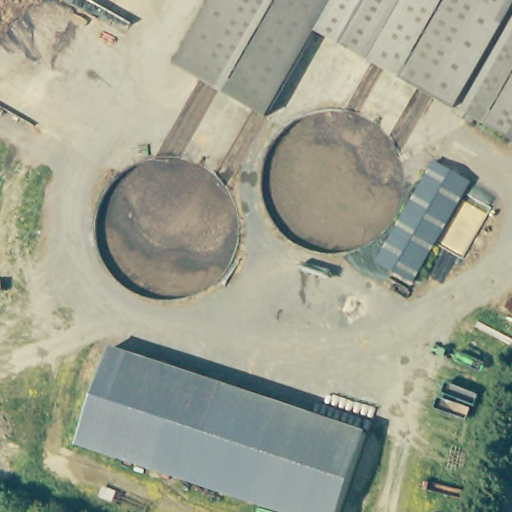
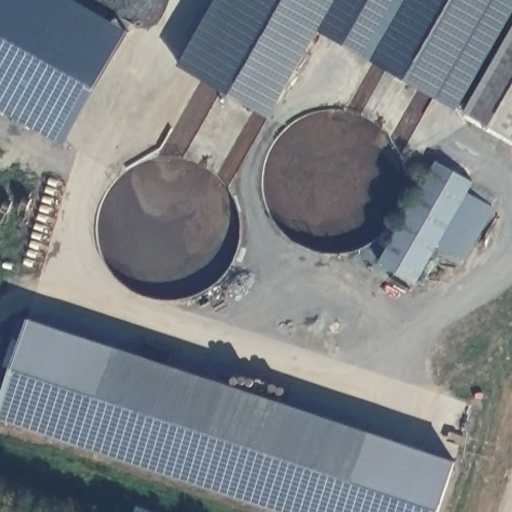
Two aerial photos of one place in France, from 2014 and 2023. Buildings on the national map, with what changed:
new [(0,108),(0,0),(73,0),(129,31),(65,145),(0,108)]
unchanged [(270,113),(180,62),(215,0),(512,0),(512,6),(457,104),(319,26),(270,113)]
unchanged [(512,135),(466,109),(512,28),(512,135)]
unchanged [(467,180),(410,280),(375,259),(431,160),(467,180)]
new [(0,413),(0,406),(30,318),(115,346),(112,356),(83,442),(0,413)]
unchanged [(115,346),(371,431),(344,512),(296,512),(98,447),(83,442),(112,356),(115,346)]
new [(371,431),(453,461),(437,512),(344,512),(371,431)]

